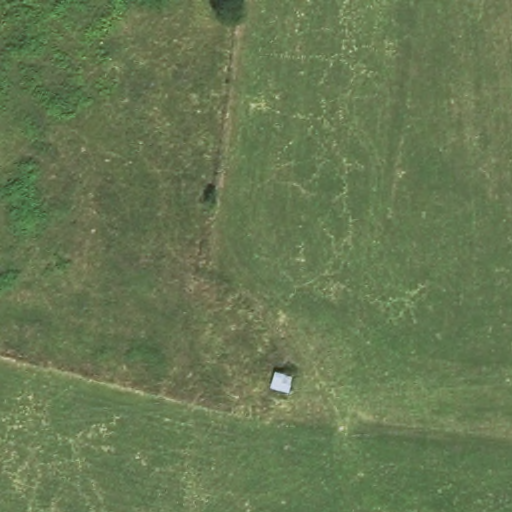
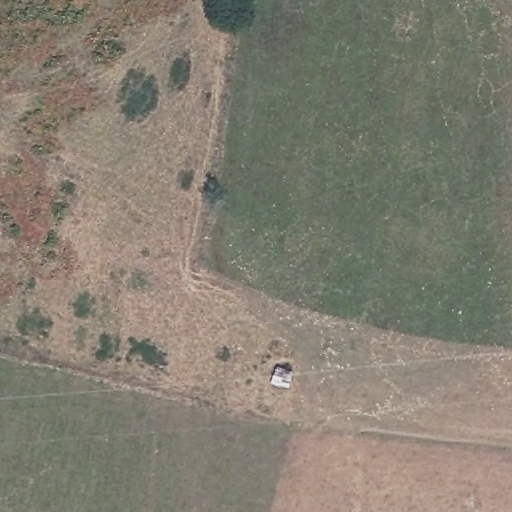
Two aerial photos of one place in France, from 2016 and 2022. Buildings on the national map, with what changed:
unchanged [(276,360),(294,367),(284,392),(266,386),(276,360)]

